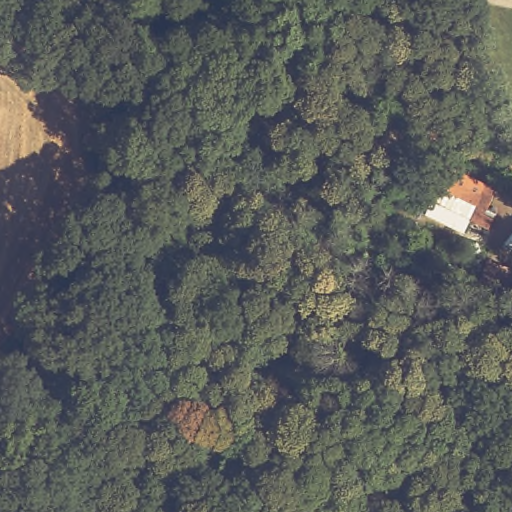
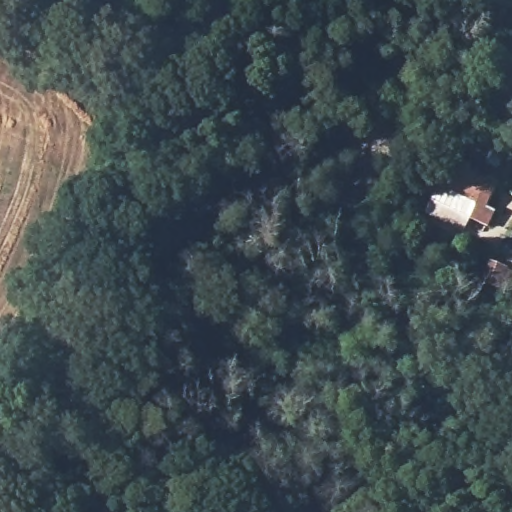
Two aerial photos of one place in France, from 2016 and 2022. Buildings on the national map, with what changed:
unchanged [(499,221),(490,235),(437,199),(456,170),(463,174),(465,172),(497,194),(503,198),(497,206),(491,216),(499,221)]
unchanged [(484,240),(501,250),(491,269),(473,259),(484,240)]

